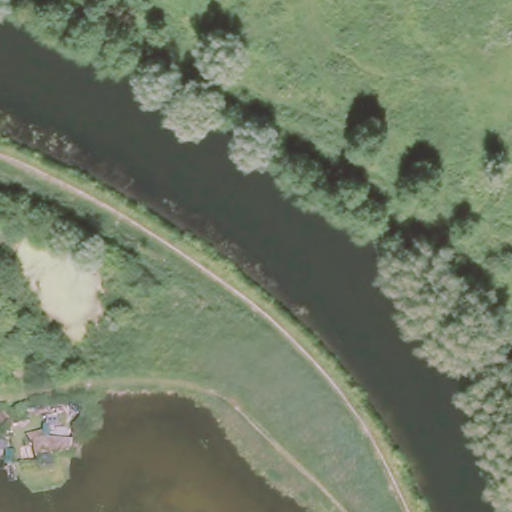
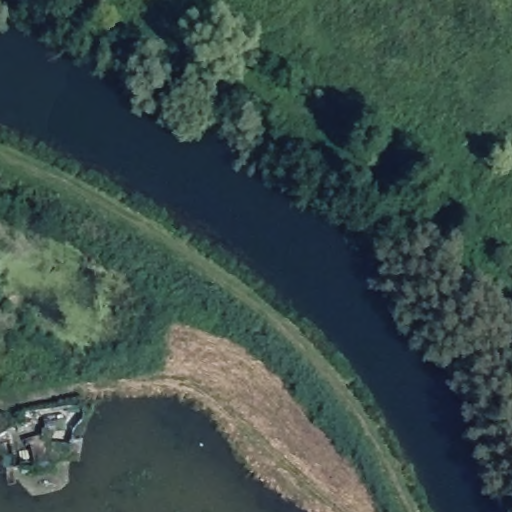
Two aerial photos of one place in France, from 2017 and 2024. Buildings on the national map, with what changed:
unchanged [(58,462),(52,467),(48,469),(32,442),(44,436),(58,462)]

